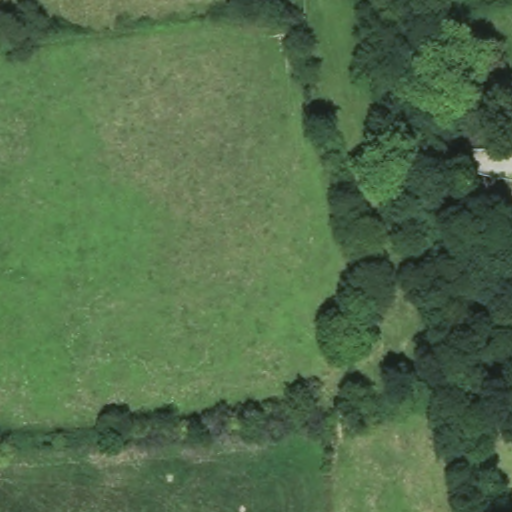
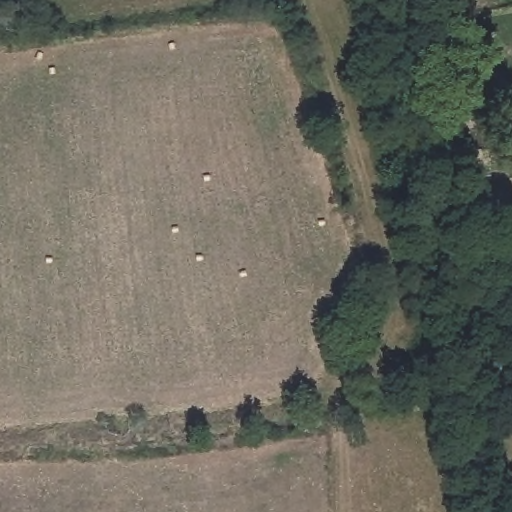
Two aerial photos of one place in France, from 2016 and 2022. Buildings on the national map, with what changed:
[]

